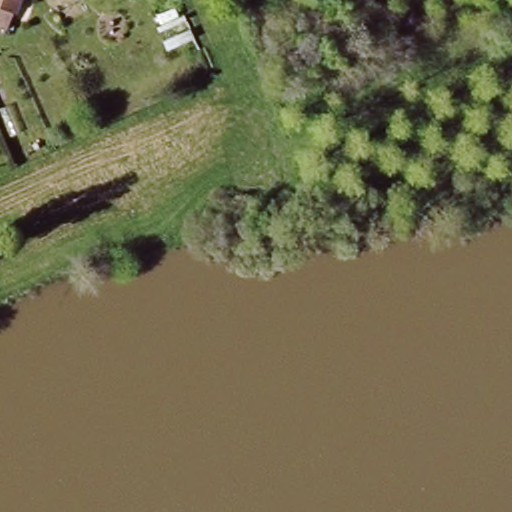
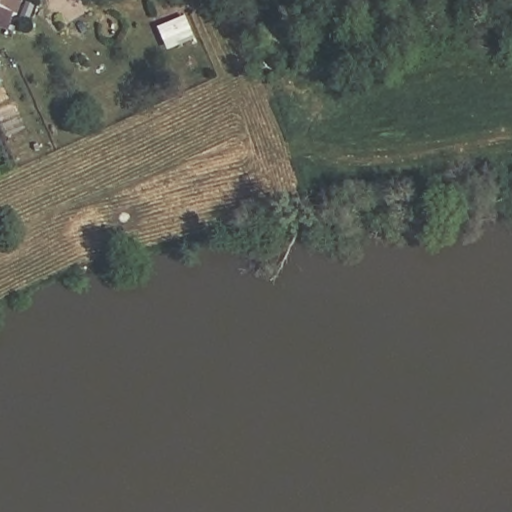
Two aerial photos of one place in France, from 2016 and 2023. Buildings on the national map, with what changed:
unchanged [(0,0),(18,0),(10,18),(4,32),(0,30),(0,0)]
unchanged [(207,34),(180,46),(169,25),(195,12),(207,34)]

